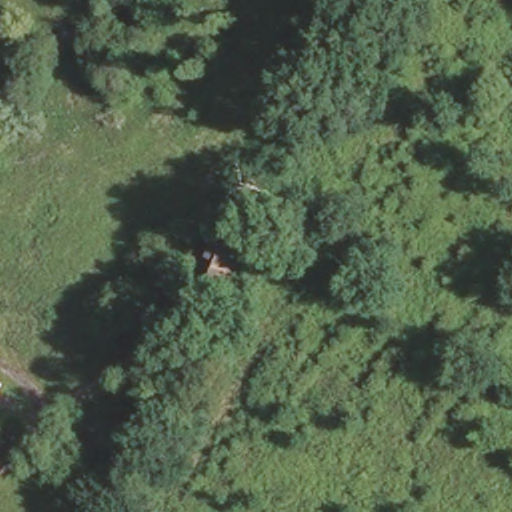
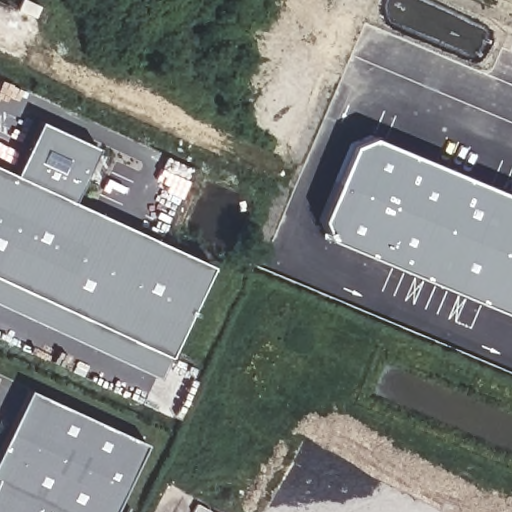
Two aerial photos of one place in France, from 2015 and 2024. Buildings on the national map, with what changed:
new [(105,141),(80,193),(220,259),(166,374),(0,299),(0,163),(21,172),(50,117),(105,141)]
new [(372,136),(512,194),(512,317),(329,240),(321,219),(352,144),(372,136)]
demolished [(224,264),(247,274),(226,321),(205,313),(224,264)]
new [(152,442),(120,512),(0,512),(0,464),(36,387),(152,442)]

